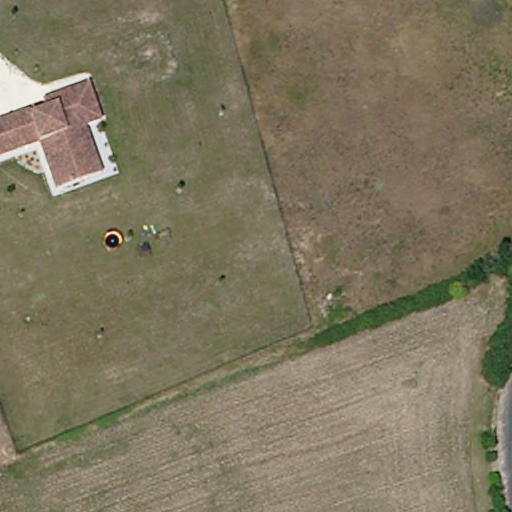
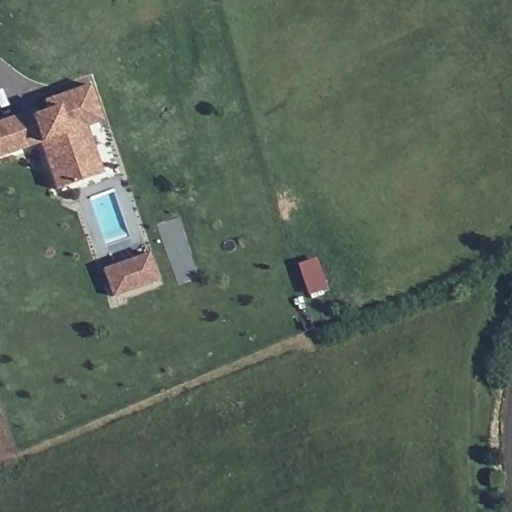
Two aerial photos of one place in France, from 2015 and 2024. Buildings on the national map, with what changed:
unchanged [(57,191),(39,143),(0,158),(0,121),(27,111),(27,117),(44,111),(41,101),(50,97),(87,85),(101,122),(85,128),(103,175),(87,180),(57,191)]
new [(113,298),(104,270),(150,252),(160,281),(113,298)]

